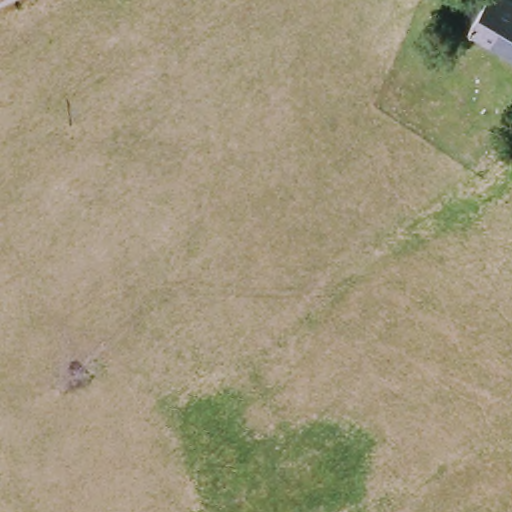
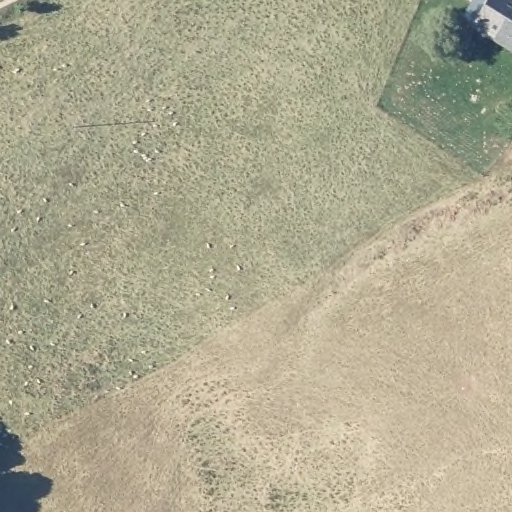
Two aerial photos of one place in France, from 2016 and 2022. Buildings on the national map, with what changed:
unchanged [(512,0),(512,48),(476,27),(492,0),(512,0)]

